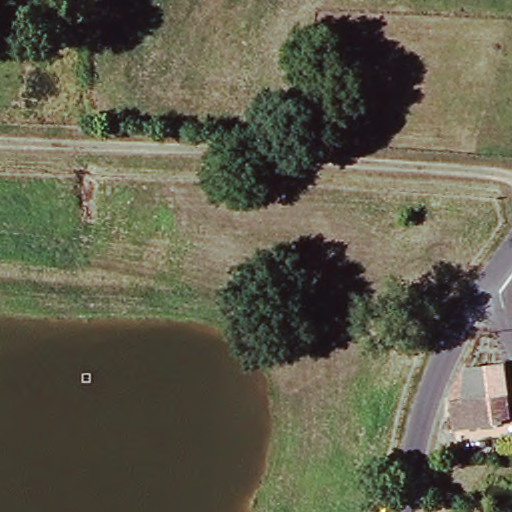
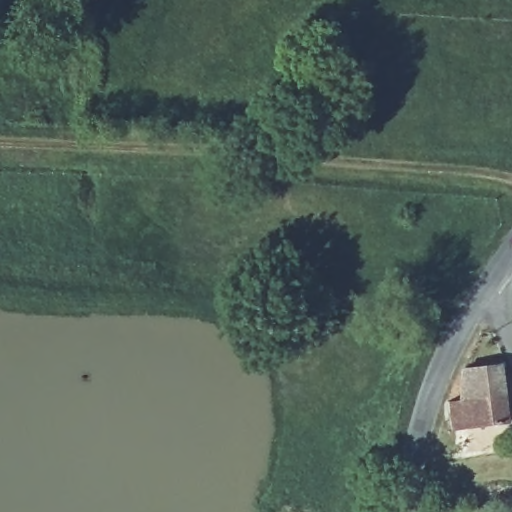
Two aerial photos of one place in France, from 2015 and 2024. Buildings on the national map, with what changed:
unchanged [(466,403),(469,368),(507,367),(511,424),(454,428),(453,405),(466,403)]

